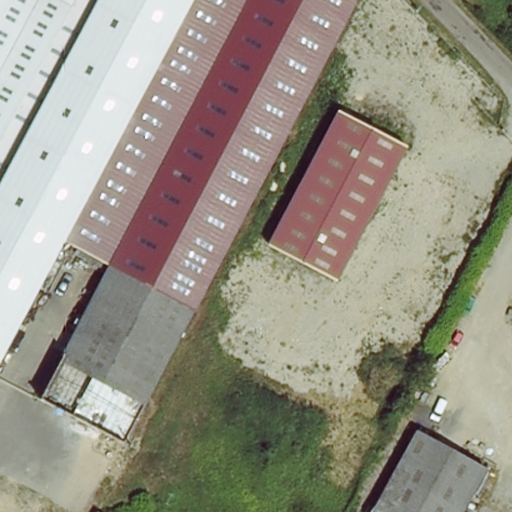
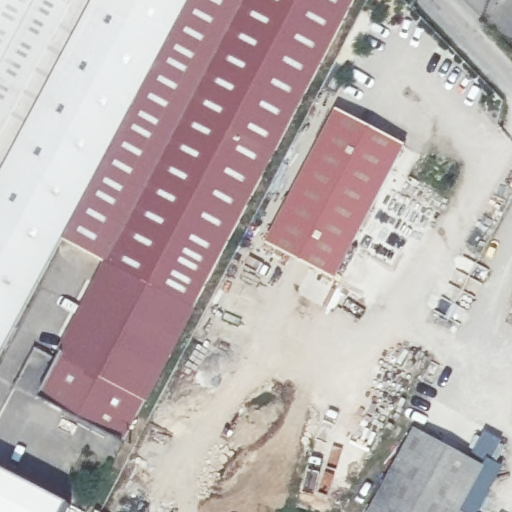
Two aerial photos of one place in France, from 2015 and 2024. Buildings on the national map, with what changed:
unchanged [(0,158),(0,0),(85,0),(0,158)]
unchanged [(0,369),(0,158),(85,0),(198,0),(0,369)]
unchanged [(117,444),(33,396),(249,0),(356,0),(117,444)]
unchanged [(327,271),(261,234),(335,102),(401,139),(327,271)]
unchanged [(461,507),(470,512),(369,512),(410,432),(481,471),(461,507)]
new [(0,512),(0,468),(73,506),(70,512),(0,512)]

